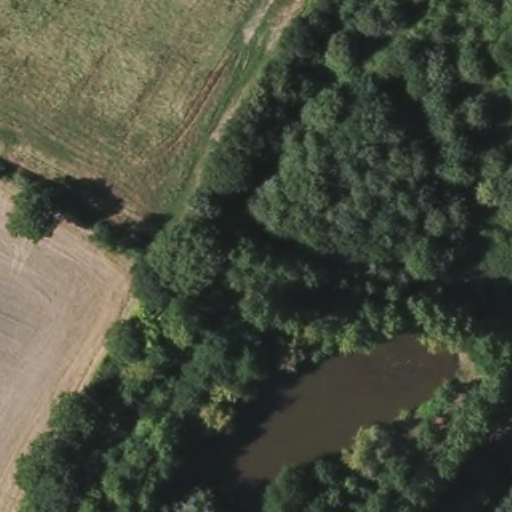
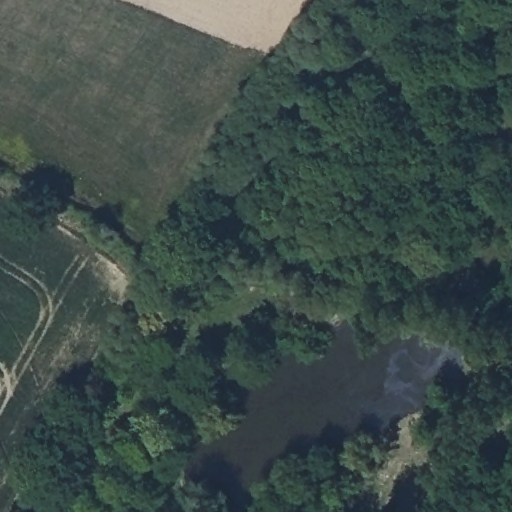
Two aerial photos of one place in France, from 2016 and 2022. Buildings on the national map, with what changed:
unchanged [(209,269),(195,262),(202,248),(216,255),(209,269)]

